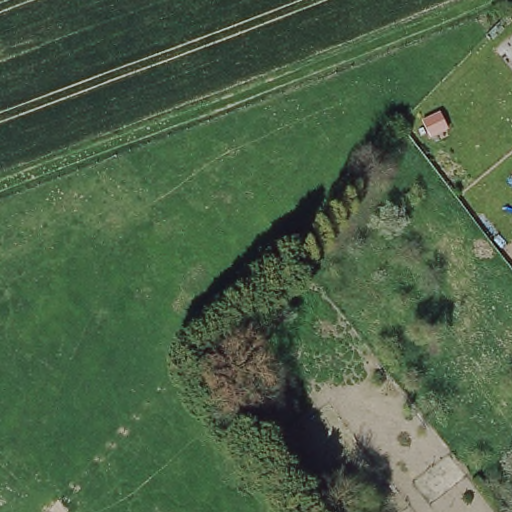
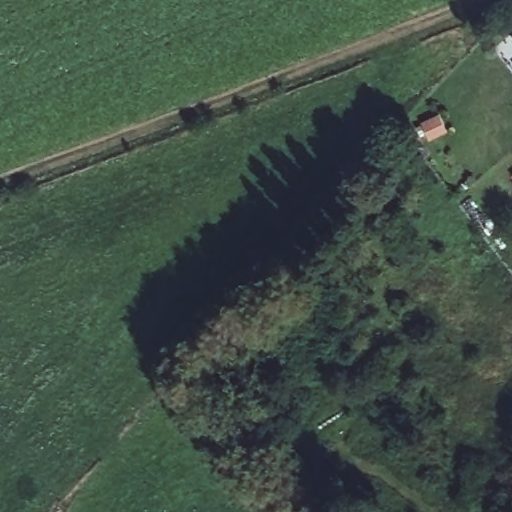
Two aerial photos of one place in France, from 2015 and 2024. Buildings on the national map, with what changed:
[]

